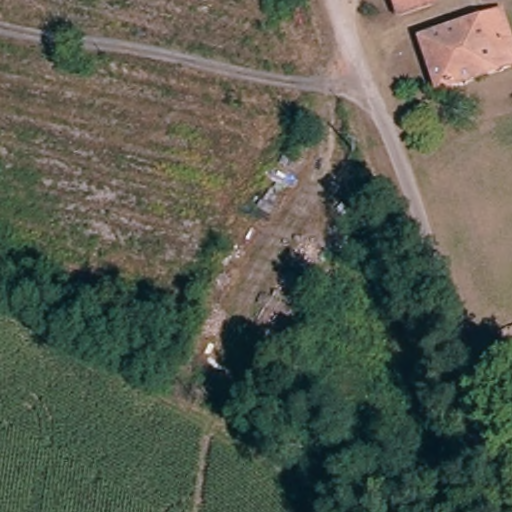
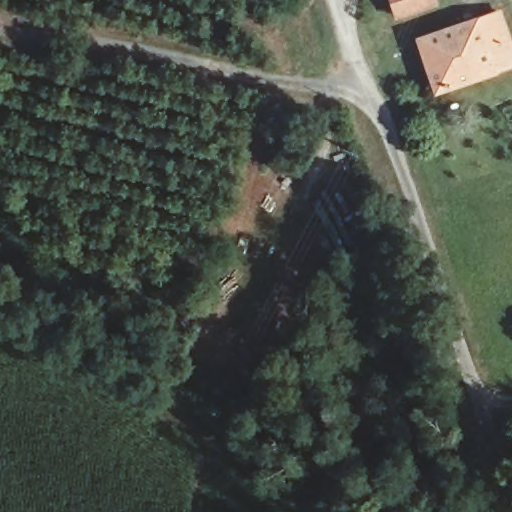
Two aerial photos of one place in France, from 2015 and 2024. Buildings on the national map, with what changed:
unchanged [(396,0),(433,0),(435,5),(401,16),(396,0)]
unchanged [(512,49),(512,67),(435,92),(418,41),(501,14),(512,49)]

